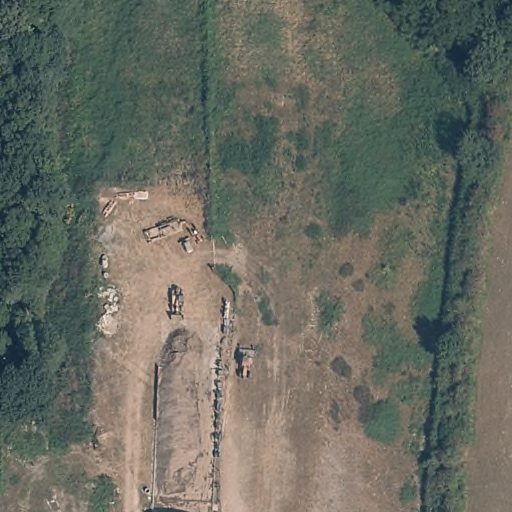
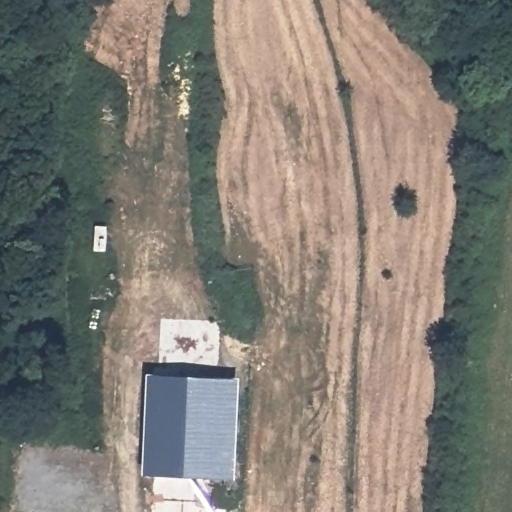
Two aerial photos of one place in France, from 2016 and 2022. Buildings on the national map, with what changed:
new [(238,378),(234,478),(141,475),(146,372),(238,378)]

